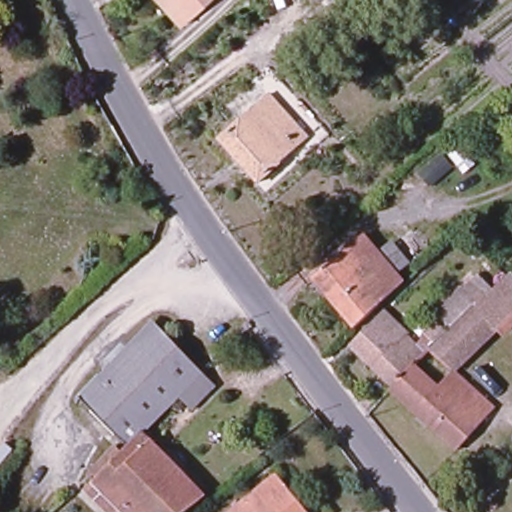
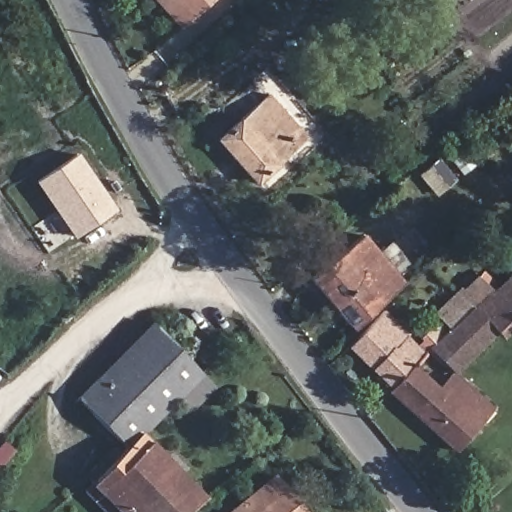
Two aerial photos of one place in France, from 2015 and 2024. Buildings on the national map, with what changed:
unchanged [(152,0),(213,0),(179,33),(152,0)]
unchanged [(324,0),(322,1),(321,0),(324,0)]
unchanged [(307,145),(256,194),(215,150),(257,111),(265,104),(292,133),(295,130),(307,145)]
unchanged [(407,176),(468,125),(494,154),(435,206),(428,199),(407,176)]
new [(114,210),(76,236),(38,182),(76,156),(114,210)]
demolished [(392,231),(371,208),(407,176),(428,199),(392,231)]
unchanged [(351,334),(308,288),(357,244),(397,289),(351,334)]
unchanged [(388,396),(346,354),(385,318),(409,340),(407,343),(417,352),(423,346),(418,337),(435,323),(431,317),(460,292),(461,293),(468,289),(475,296),(468,304),(475,313),(509,282),(512,285),(512,334),(500,345),(492,338),(453,378),(493,413),(453,459),(386,399),(388,396)]
unchanged [(81,497),(88,489),(83,483),(101,464),(110,456),(115,462),(121,455),(70,405),(91,383),(94,385),(152,329),(212,391),(214,393),(192,416),(179,402),(156,424),(143,437),(191,485),(205,500),(189,512),(97,512),(81,497)]
unchanged [(253,497),(248,491),(267,477),(280,494),(258,512),(235,512),(253,497)]
unchanged [(280,494),(296,512),(258,512),(280,494)]

